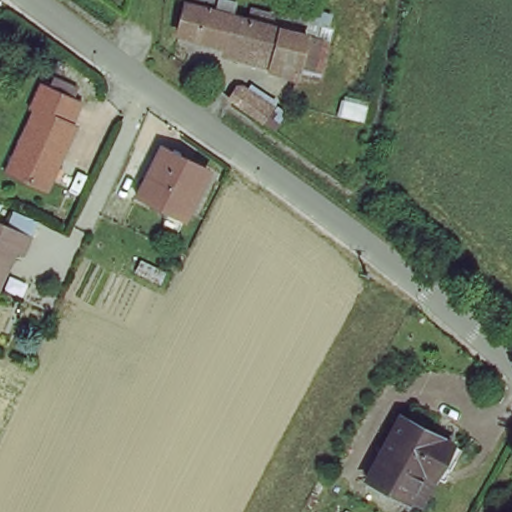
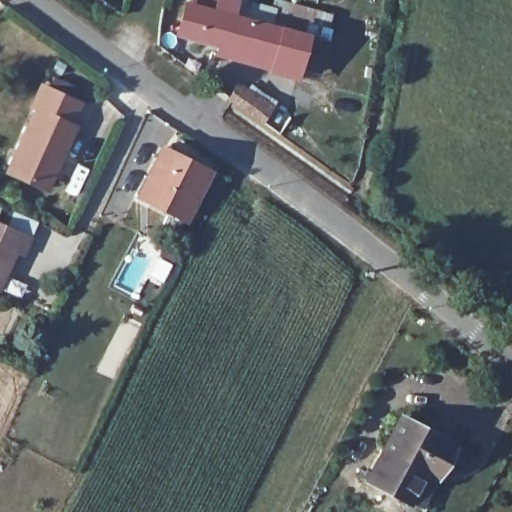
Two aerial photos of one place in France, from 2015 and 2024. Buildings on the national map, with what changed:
unchanged [(273,58),(177,32),(183,4),(194,7),(195,0),(236,0),(238,1),(235,16),(255,21),(278,27),(273,58)]
unchanged [(322,76),(299,71),(305,34),(278,27),(255,21),(258,7),(280,13),(332,28),(322,76)]
unchanged [(298,74),(272,66),(273,58),(278,27),(305,34),(299,71),(298,74)]
unchanged [(276,129),(261,119),(227,96),(235,82),(271,107),(286,117),(276,129)]
unchanged [(15,152),(30,122),(31,111),(28,109),(38,90),(72,106),(64,128),(69,130),(44,190),(11,176),(5,173),(15,152)]
unchanged [(208,169),(185,217),(139,193),(162,146),(208,169)]
unchanged [(5,224),(11,212),(33,221),(26,234),(19,250),(13,248),(0,275),(0,222),(5,224)]
unchanged [(421,472),(407,502),(366,478),(398,418),(449,448),(440,467),(434,479),(421,472)]

